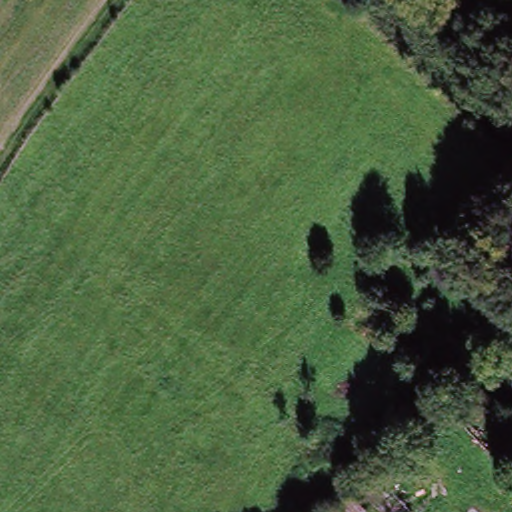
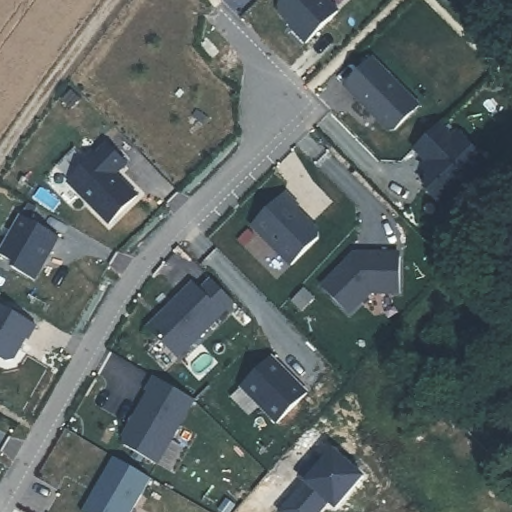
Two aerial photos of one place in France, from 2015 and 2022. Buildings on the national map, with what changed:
new [(422,96),(397,120),(390,120),(380,110),(381,109),(374,103),(373,104),(347,77),(375,49),(422,96)]
new [(476,169),(475,168),(462,179),(465,180),(447,198),(428,178),(431,175),(431,165),(432,164),(425,157),(430,152),(417,139),(442,114),(455,127),(460,122),(492,154),(476,169)]
new [(117,168),(139,189),(111,217),(70,175),(109,138),(128,157),(117,168)]
new [(252,217),(285,184),(298,198),(295,200),(318,223),(318,230),(291,257),(252,217)]
new [(61,230),(52,246),(51,245),(44,258),(45,259),(36,274),(14,262),(17,258),(1,249),(23,209),(61,230)]
new [(400,285),(371,285),(350,307),(321,278),(346,253),(349,256),(355,251),(355,244),(381,245),(385,249),(401,249),(400,285)]
new [(236,294),(181,351),(150,319),(196,275),(202,282),(213,272),(236,294)]
new [(29,334),(26,333),(14,355),(8,357),(0,352),(0,298),(37,319),(29,334)]
new [(307,383),(276,414),(242,379),(273,349),(307,383)]
new [(127,433),(152,387),(150,386),(157,371),(197,394),(161,458),(129,439),(127,433)]
new [(146,467),(121,512),(95,512),(80,504),(111,448),(146,467)]
unchanged [(368,512),(332,512),(355,493),(370,511),(368,512)]

